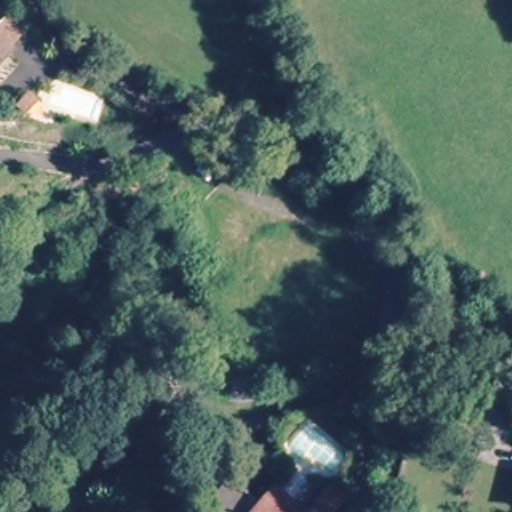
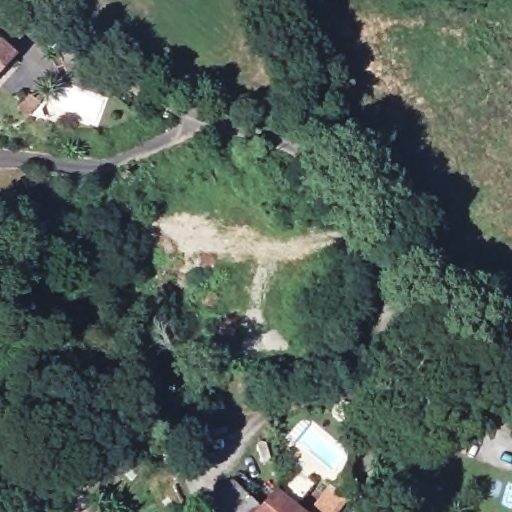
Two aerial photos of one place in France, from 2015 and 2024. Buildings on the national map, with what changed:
unchanged [(2,58),(1,58),(0,57),(0,30),(15,41),(2,58)]
unchanged [(2,58),(5,60),(0,67),(0,57),(1,58),(2,58)]
unchanged [(40,95),(31,107),(23,101),(33,89),(40,95)]
unchanged [(327,493),(345,504),(347,506),(342,512),(311,512),(327,493)]
unchanged [(298,512),(261,512),(264,508),(277,494),(295,509),(298,512)]

